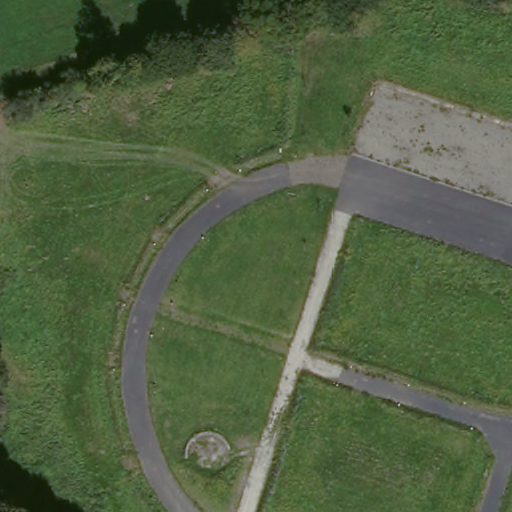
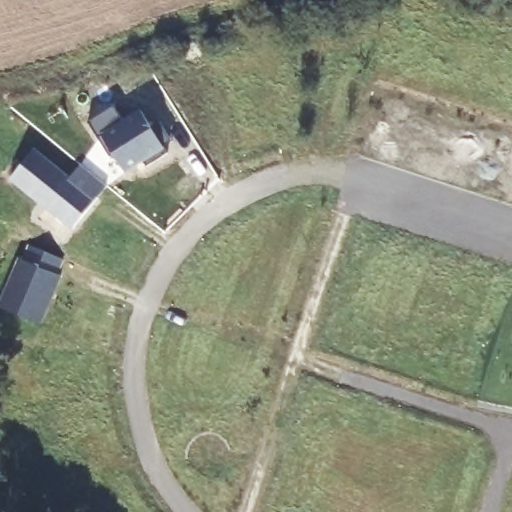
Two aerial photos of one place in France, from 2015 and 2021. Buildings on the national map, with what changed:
new [(114,153),(110,156),(87,121),(115,104),(124,120),(140,109),(152,127),(160,123),(172,142),(164,147),(167,155),(147,167),(144,161),(126,172),(114,153)]
new [(10,177),(35,147),(70,177),(80,164),(107,186),(95,202),(72,228),(10,177)]
new [(25,258),(31,244),(62,257),(57,273),(62,276),(41,325),(0,307),(0,303),(20,257),(25,258)]

